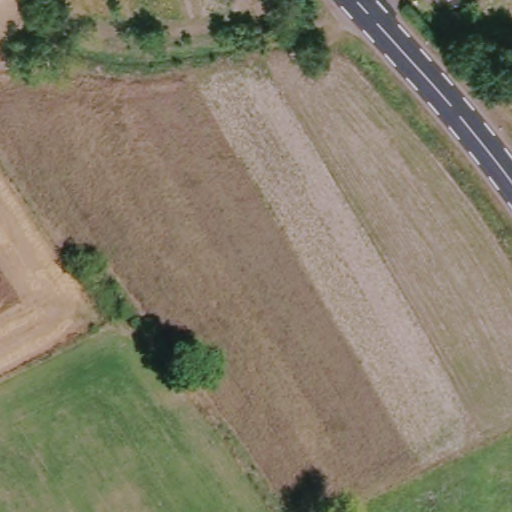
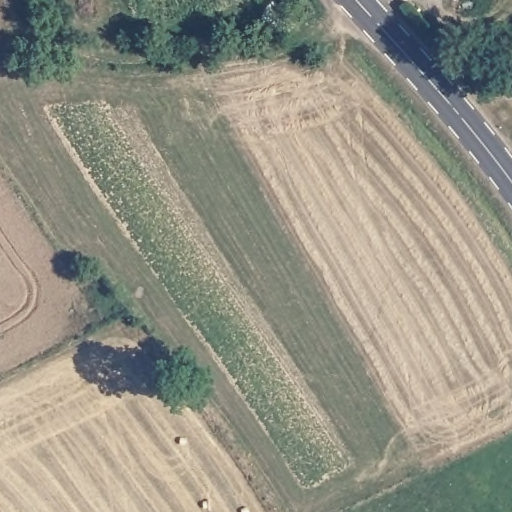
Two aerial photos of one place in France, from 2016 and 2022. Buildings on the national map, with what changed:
unchanged [(479,1),(448,12),(444,0),(478,0),(479,1)]

